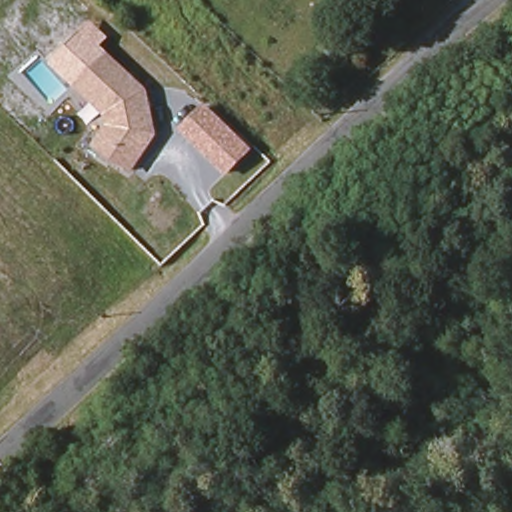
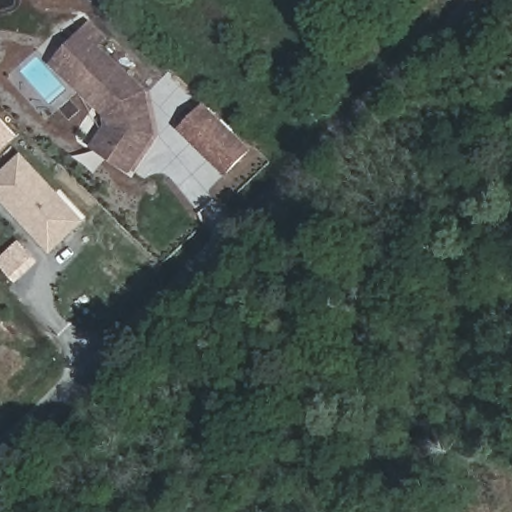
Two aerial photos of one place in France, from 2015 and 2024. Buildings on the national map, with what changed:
unchanged [(90,19),(109,37),(102,46),(107,51),(104,54),(72,85),(49,62),(90,19)]
unchanged [(104,54),(107,51),(147,87),(157,134),(131,175),(89,144),(105,125),(102,115),(72,85),(104,54)]
unchanged [(229,175),(181,127),(206,102),(255,150),(229,175)]
new [(84,221),(71,232),(69,231),(64,236),(66,237),(52,250),(10,204),(0,193),(0,177),(7,170),(22,156),(84,221)]

